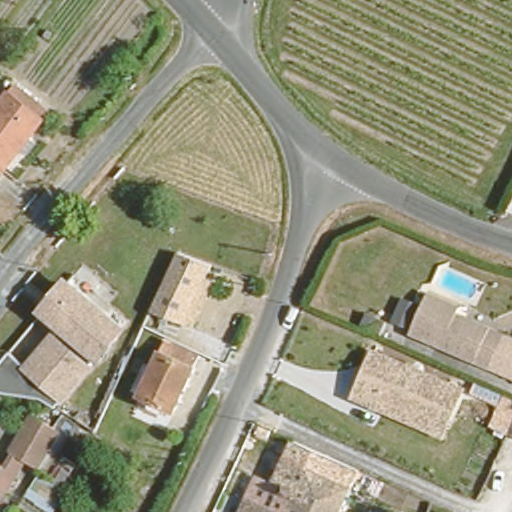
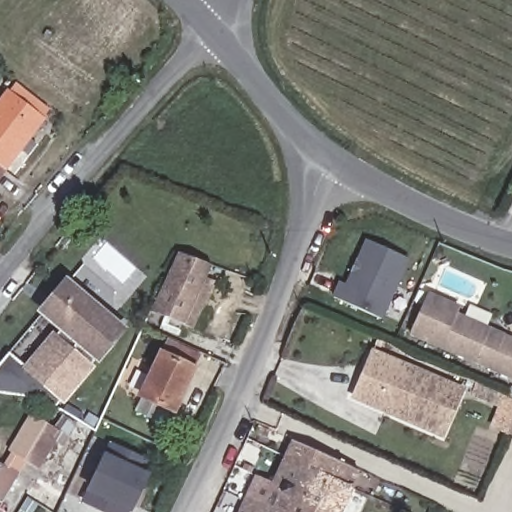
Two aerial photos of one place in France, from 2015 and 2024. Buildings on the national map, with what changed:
unchanged [(8,165),(2,162),(0,164),(0,93),(7,82),(47,110),(8,165)]
new [(408,258),(382,318),(332,297),(339,280),(345,283),(365,238),(408,258)]
unchanged [(176,244),(212,261),(184,315),(144,304),(176,244)]
unchanged [(68,278),(131,330),(103,365),(96,360),(63,403),(59,399),(51,406),(42,399),(0,395),(0,366),(12,351),(27,361),(57,330),(38,315),(68,278)]
unchanged [(408,336),(425,295),(458,308),(455,319),(504,337),(492,371),(408,336)]
unchanged [(140,397),(162,352),(168,339),(195,350),(208,333),(233,348),(226,364),(204,356),(199,370),(174,416),(140,397)]
new [(512,340),(512,379),(492,371),(504,337),(512,340)]
unchanged [(444,439),(353,398),(374,350),(467,387),(444,439)]
unchanged [(64,429),(37,467),(25,458),(0,495),(0,454),(27,408),(64,429)]
unchanged [(511,432),(512,431),(512,433),(511,432)]
unchanged [(242,470),(270,481),(288,436),(357,465),(337,512),(225,512),(242,470)]
new [(87,491),(103,453),(108,443),(151,463),(147,474),(130,510),(130,512),(104,512),(81,501),(87,491)]

